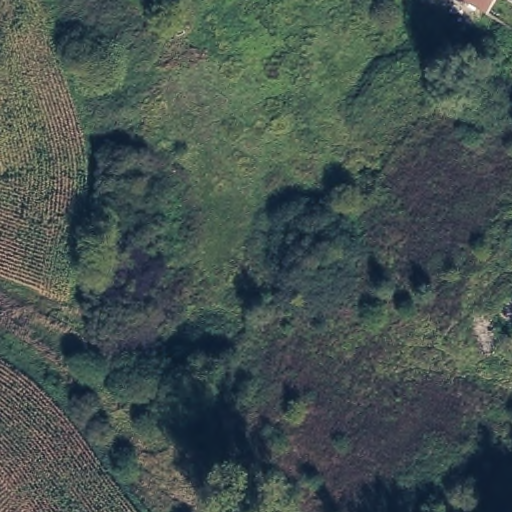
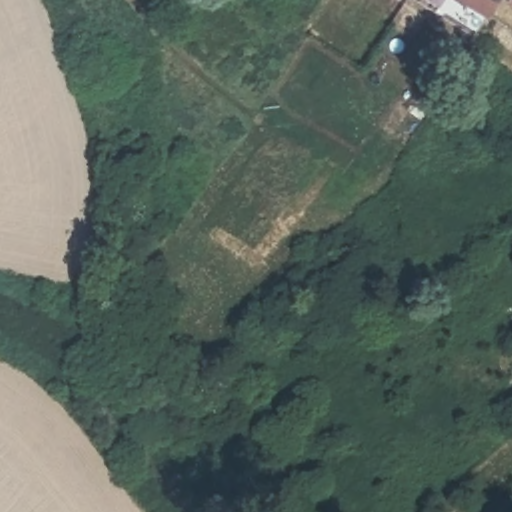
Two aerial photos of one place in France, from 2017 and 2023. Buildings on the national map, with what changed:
unchanged [(463,0),(492,0),(485,13),(463,0)]

